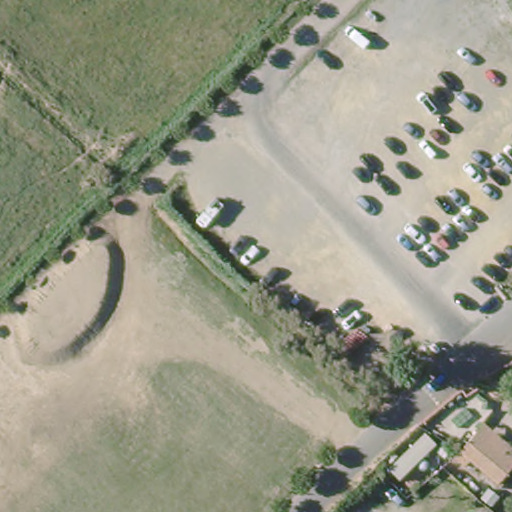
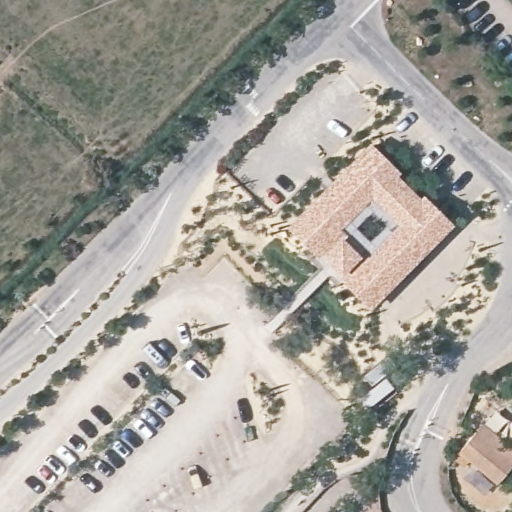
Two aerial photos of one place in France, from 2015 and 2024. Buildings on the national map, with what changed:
new [(370,142),(399,172),(397,175),(419,197),(422,193),(453,225),(370,308),(339,278),(340,276),(321,255),(319,258),(286,227),(370,142)]
unchanged [(406,378),(395,388),(387,378),(399,369),(406,378)]
unchanged [(512,444),(512,472),(501,485),(473,461),(469,466),(467,468),(458,459),(459,458),(482,432),(488,424),(512,444)]

